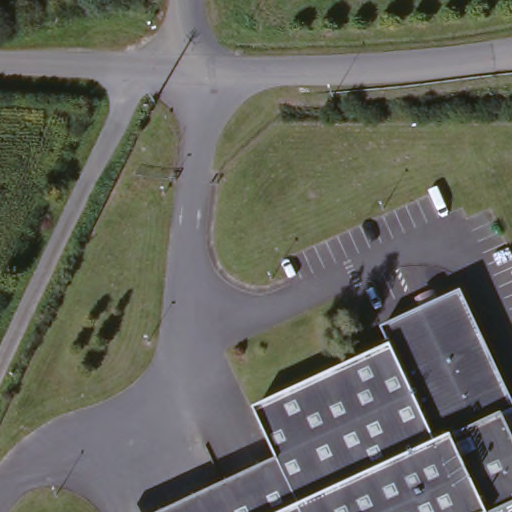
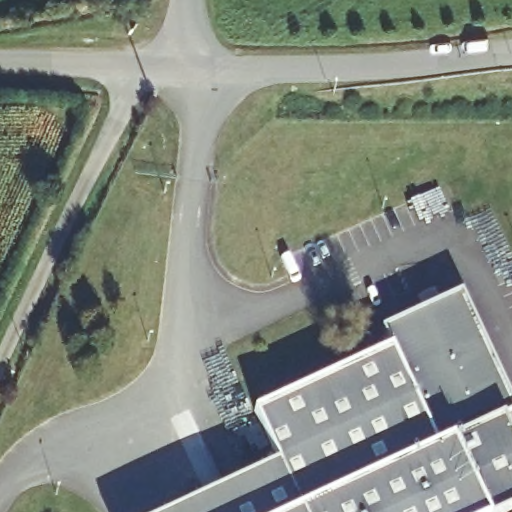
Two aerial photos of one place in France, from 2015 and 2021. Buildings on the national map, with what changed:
unchanged [(282,455),(262,407),(373,356),(364,337),(464,291),(512,397),(512,414),(505,417),(512,433),(512,510),(508,512),(158,512),(282,455)]

